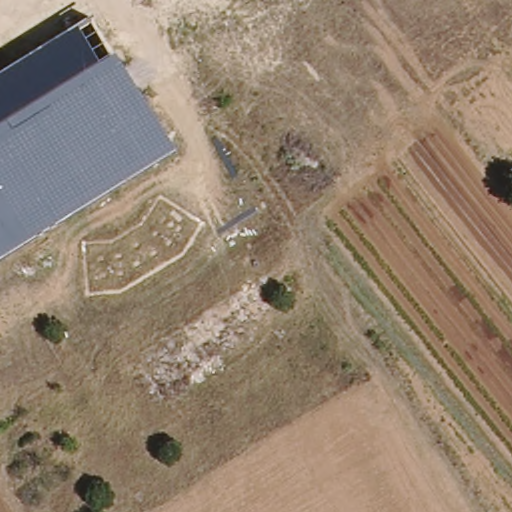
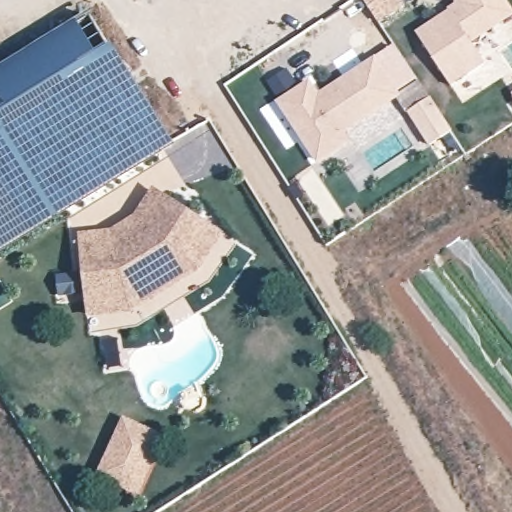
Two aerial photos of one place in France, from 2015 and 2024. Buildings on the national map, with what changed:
new [(459,0),(505,0),(512,11),(512,15),(473,42),(488,64),(454,87),(417,33),(461,4),(459,0)]
unchanged [(91,13),(176,144),(0,253),(0,69),(91,13)]
new [(311,84),(320,98),(375,61),(400,96),(344,133),(350,143),(321,162),(281,103),(311,84)]
new [(433,145),(419,125),(410,112),(431,98),(440,111),(453,132),(433,145)]
new [(189,256),(127,293),(91,295),(88,243),(87,236),(118,234),(142,219),(160,192),(166,197),(209,225),(189,256)]
new [(127,293),(189,256),(209,225),(226,236),(204,271),(134,313),(92,315),(91,295),(127,293)]
new [(160,434),(150,461),(154,463),(139,498),(95,479),(122,417),(160,434)]

